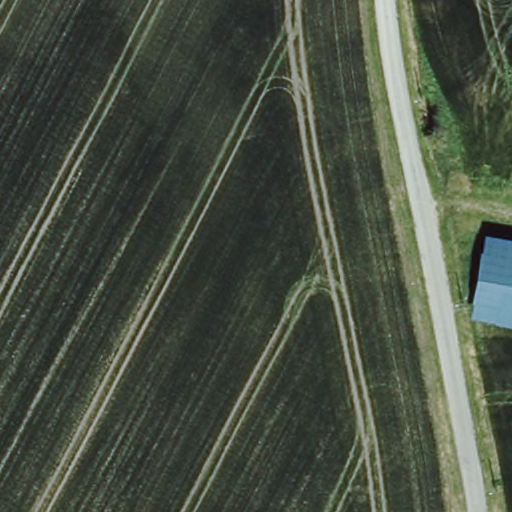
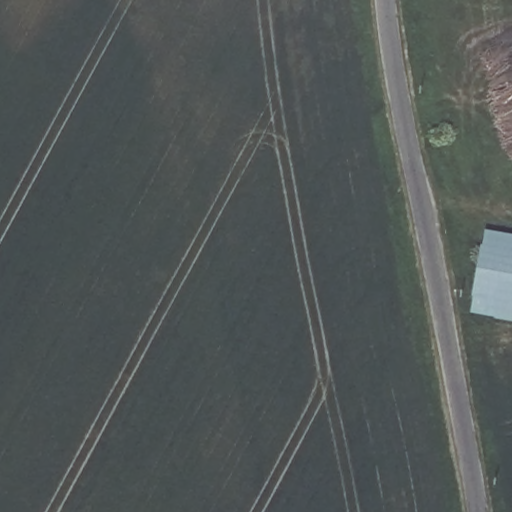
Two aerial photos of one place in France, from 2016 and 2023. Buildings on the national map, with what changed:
unchanged [(482,237),(512,242),(512,324),(472,317),(482,237)]

